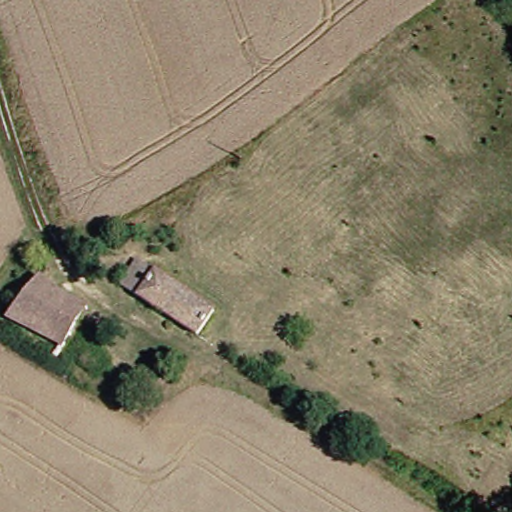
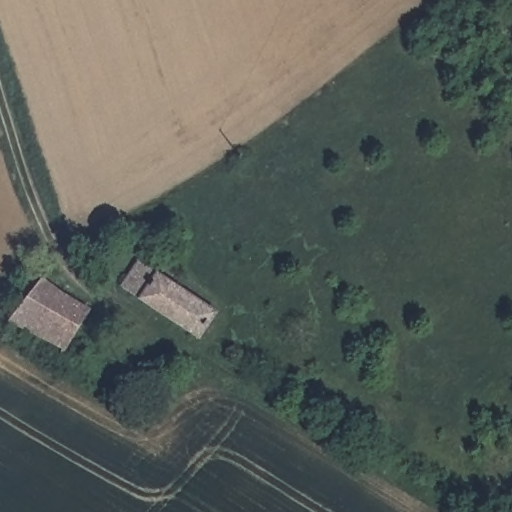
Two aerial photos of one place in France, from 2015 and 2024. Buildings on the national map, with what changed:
unchanged [(145,262),(220,315),(205,340),(130,289),(145,262)]
unchanged [(70,353),(21,325),(47,277),(96,304),(70,353)]

